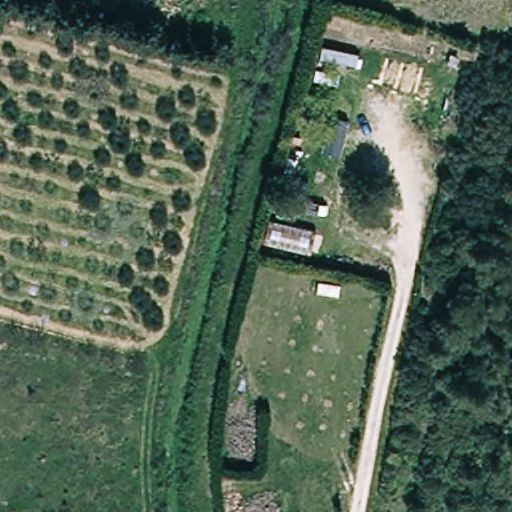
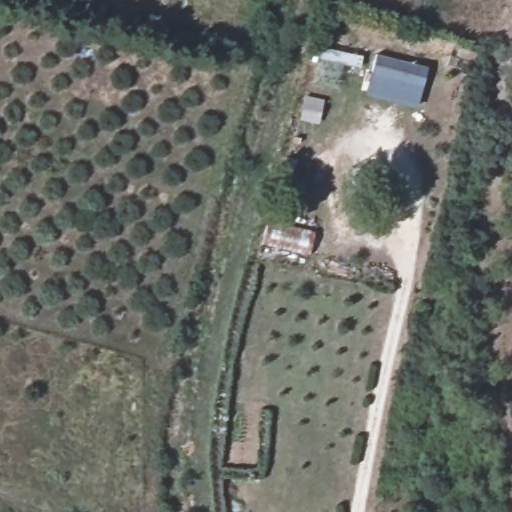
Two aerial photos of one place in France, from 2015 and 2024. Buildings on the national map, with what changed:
new [(429,67),(418,108),(365,94),(377,54),(429,67)]

